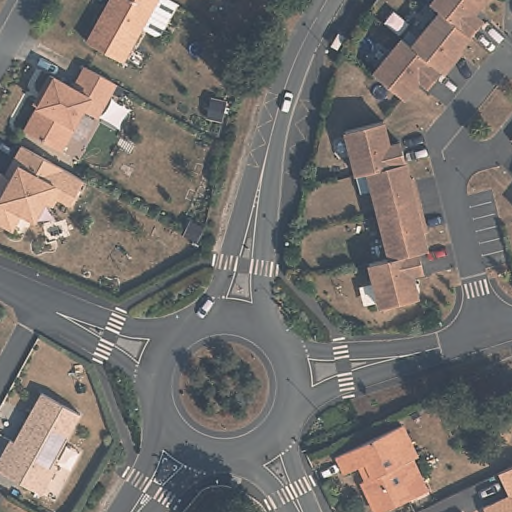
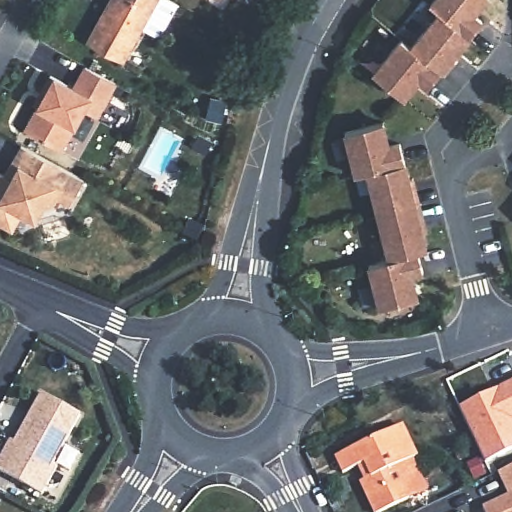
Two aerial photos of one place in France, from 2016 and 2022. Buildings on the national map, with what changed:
unchanged [(108,0),(156,0),(122,61),(85,41),(108,0)]
unchanged [(443,72),(430,88),(421,80),(405,100),(375,74),(403,40),(413,47),(441,13),(432,5),(436,0),(487,0),(475,14),(484,21),(460,51),(463,53),(446,75),(443,72)]
unchanged [(96,116),(82,109),(60,150),(24,129),(37,106),(33,103),(39,93),(49,74),(73,87),(84,66),(114,83),(96,116)]
unchanged [(415,254),(420,274),(409,277),(415,301),(377,310),(366,267),(386,262),(364,174),(352,177),(341,134),(380,124),(386,148),(397,145),(406,181),(410,181),(423,234),(419,235),(424,252),(415,254)]
unchanged [(2,179),(19,149),(47,165),(82,184),(68,209),(55,202),(51,210),(44,206),(33,225),(19,218),(10,234),(0,228),(0,178),(2,179)]
new [(512,448),(485,462),(458,407),(512,380),(512,448)]
unchanged [(52,464),(57,466),(41,495),(0,472),(0,458),(9,441),(13,443),(21,429),(26,419),(40,393),(79,415),(52,464)]
unchanged [(414,455),(409,458),(424,489),(378,512),(372,512),(358,485),(368,480),(360,465),(340,474),(331,456),(398,424),(414,455)]
unchanged [(507,495),(497,473),(512,466),(512,512),(484,512),(481,507),(507,495)]

